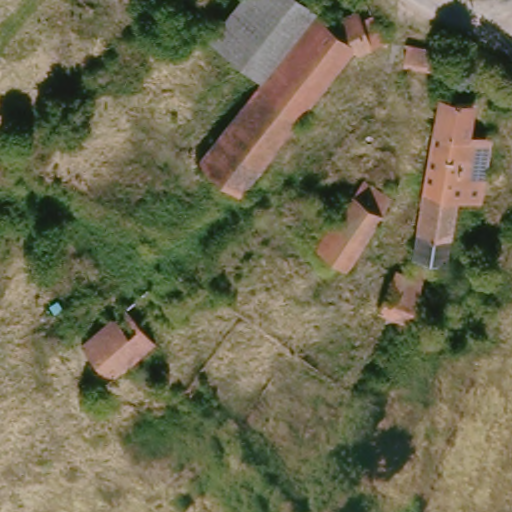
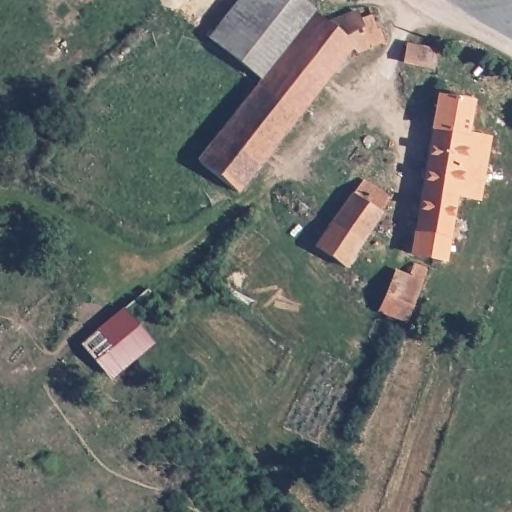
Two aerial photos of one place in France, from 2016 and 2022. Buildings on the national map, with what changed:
unchanged [(257,78),(206,37),(236,0),(295,0),(310,11),(307,14),(257,78)]
unchanged [(356,17),(367,13),(385,42),(355,54),(348,47),(297,112),(257,78),(307,14),(320,23),(351,9),(356,17)]
unchanged [(433,69),(405,64),(408,44),(435,48),(437,48),(433,69)]
unchanged [(297,112),(235,190),(195,157),(257,78),(297,112)]
unchanged [(433,91),(470,96),(466,128),(487,131),(478,193),(452,189),(418,184),(433,91)]
unchanged [(308,248),(318,230),(352,175),(383,194),(350,249),(339,267),(308,248)]
unchanged [(452,189),(441,255),(408,251),(418,184),(452,189)]
unchanged [(397,320),(372,307),(393,261),(403,266),(410,256),(425,264),(397,320)]
unchanged [(112,378),(82,343),(125,306),(155,340),(125,366),(112,378)]

